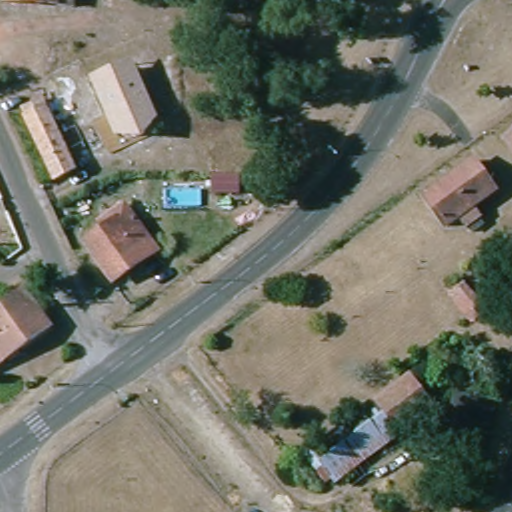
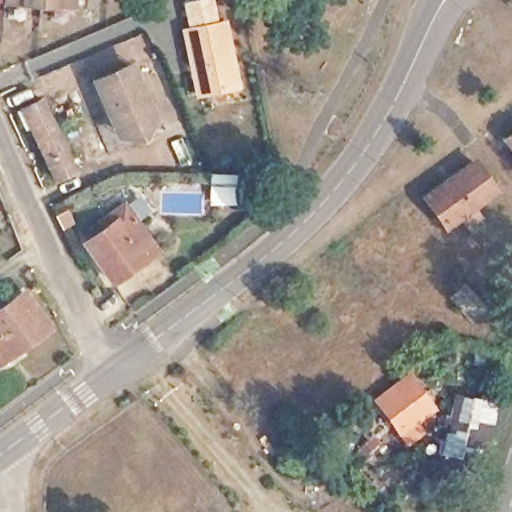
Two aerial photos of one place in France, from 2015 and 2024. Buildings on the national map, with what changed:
unchanged [(75,0),(74,13),(5,8),(0,7),(0,0),(75,0)]
new [(224,22),(237,86),(197,94),(185,31),(224,22)]
unchanged [(107,113),(94,84),(92,79),(131,63),(132,68),(145,96),(156,121),(151,123),(143,133),(135,136),(122,136),(117,138),(107,113)]
unchanged [(55,181),(27,120),(22,109),(35,103),(36,105),(43,101),(47,110),(76,171),(55,181)]
unchanged [(512,137),(512,159),(501,145),(512,137)]
unchanged [(492,198),(469,214),(477,224),(463,234),(456,224),(444,233),(421,203),(469,167),(492,198)]
unchanged [(236,192),(211,192),(211,177),(236,177),(236,192)]
unchanged [(158,251),(114,283),(87,245),(115,224),(110,218),(126,207),(158,251)]
unchanged [(492,310),(480,321),(459,298),(471,287),(492,310)]
unchanged [(25,293),(51,329),(0,365),(0,311),(25,293)]
unchanged [(430,410),(333,483),(310,452),(406,379),(430,410)]
unchanged [(491,442),(474,439),(472,449),(445,444),(447,434),(452,435),(461,388),(500,395),(491,442)]

